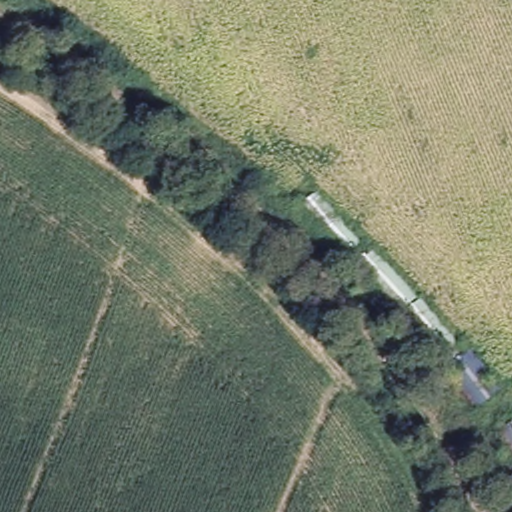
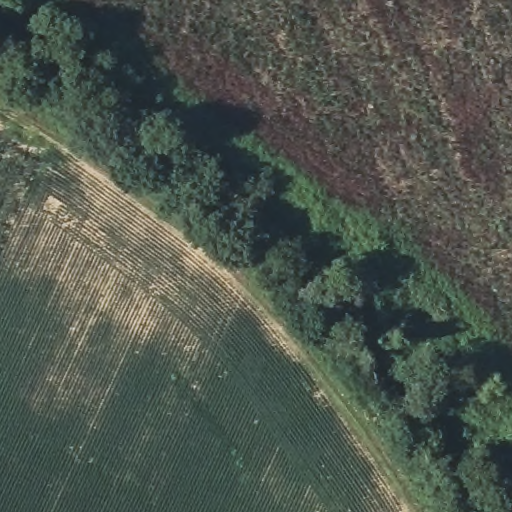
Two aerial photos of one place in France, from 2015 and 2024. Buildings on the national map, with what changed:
unchanged [(300,205),(318,189),(472,350),(503,389),(482,406),(300,205)]
unchanged [(512,424),(512,444),(502,430),(512,424)]

